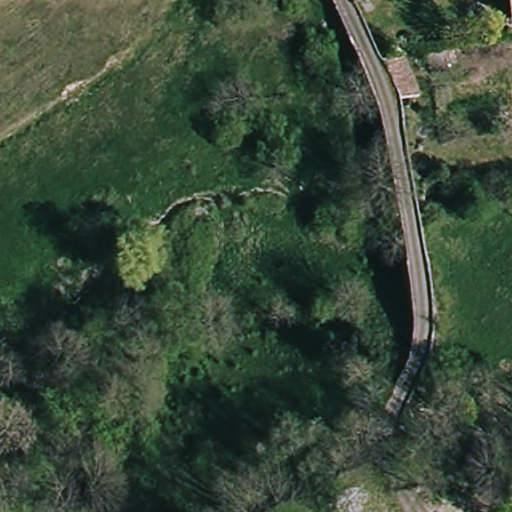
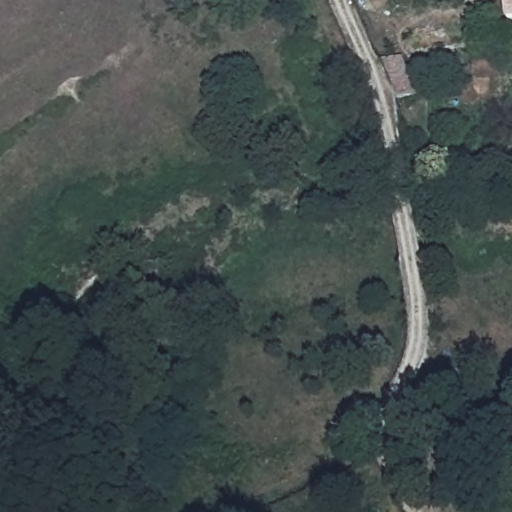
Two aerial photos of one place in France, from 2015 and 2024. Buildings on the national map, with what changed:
unchanged [(509,0),(512,0),(512,21),(512,22),(509,0)]
unchanged [(397,102),(380,60),(403,58),(419,98),(397,102)]

